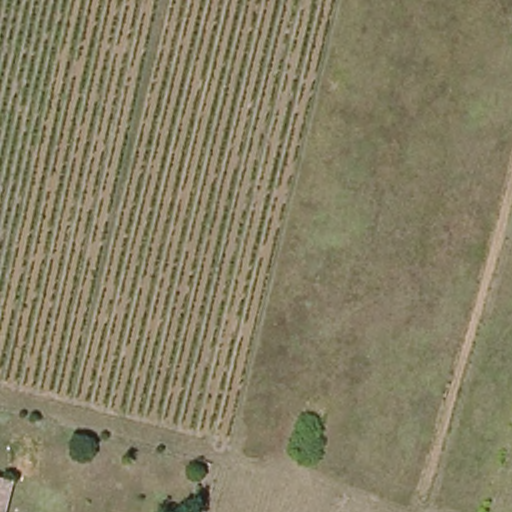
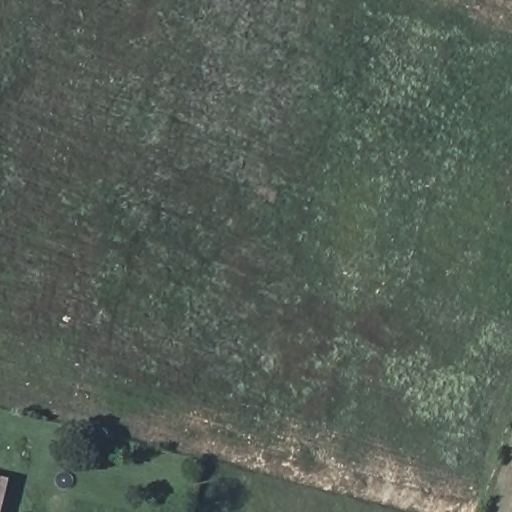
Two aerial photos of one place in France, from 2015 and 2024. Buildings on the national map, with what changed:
unchanged [(9,475),(0,511),(0,472),(9,475)]

